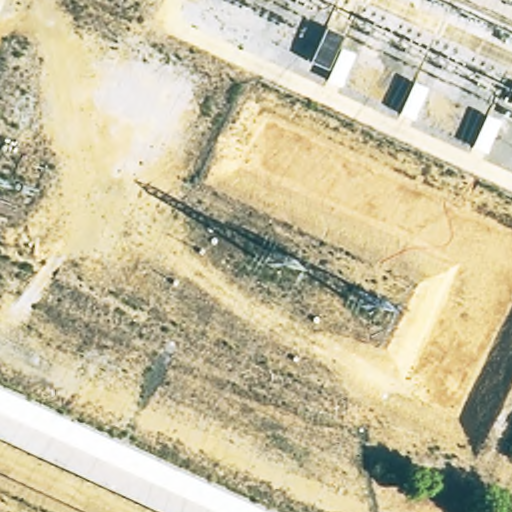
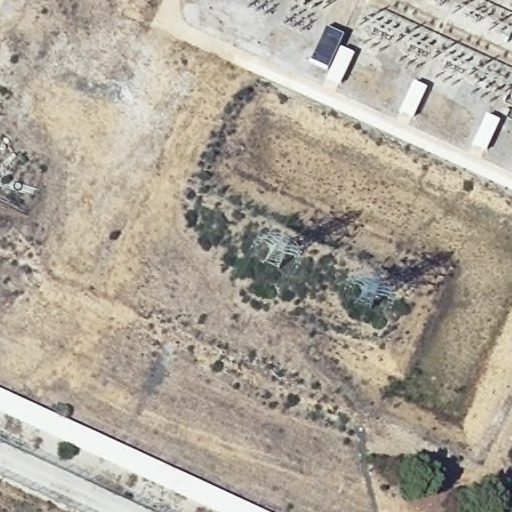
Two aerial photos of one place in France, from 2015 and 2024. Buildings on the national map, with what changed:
unchanged [(340,36),(326,67),(307,59),(323,28),(340,36)]
unchanged [(0,414),(0,390),(160,463),(265,512),(214,512),(0,414)]

